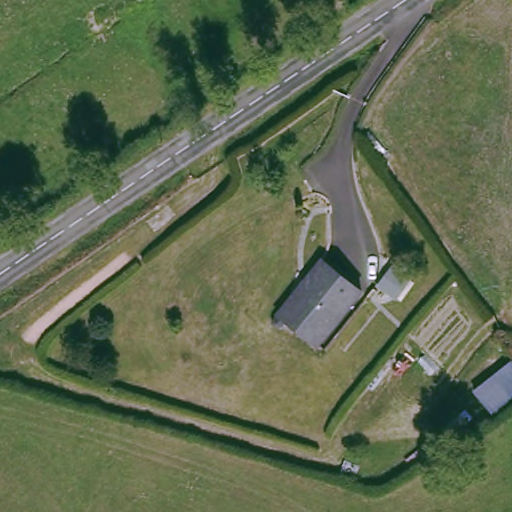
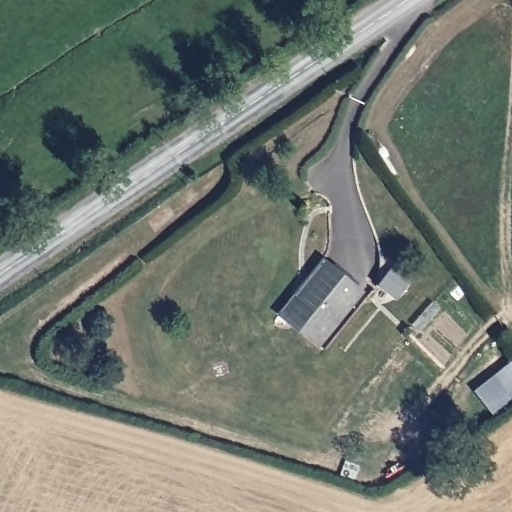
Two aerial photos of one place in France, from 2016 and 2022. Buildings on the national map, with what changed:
unchanged [(320,256),(355,287),(307,342),(270,312),(320,256)]
unchanged [(383,256),(417,281),(400,299),(380,281),(383,256)]
unchanged [(512,366),(512,401),(493,415),(477,393),(497,377),(512,366)]

